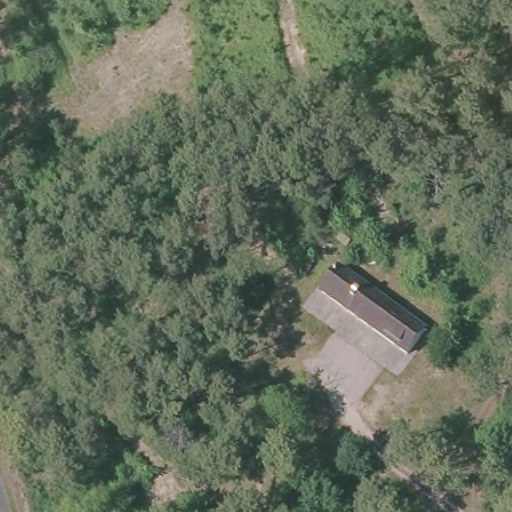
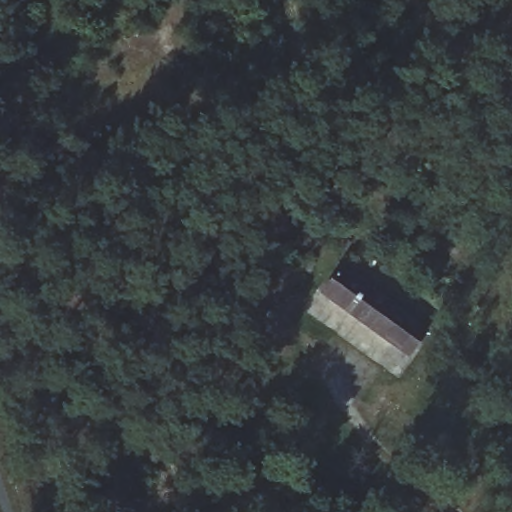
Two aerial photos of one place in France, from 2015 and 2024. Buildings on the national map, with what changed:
unchanged [(429,331),(408,362),(322,301),(341,269),(429,331)]

